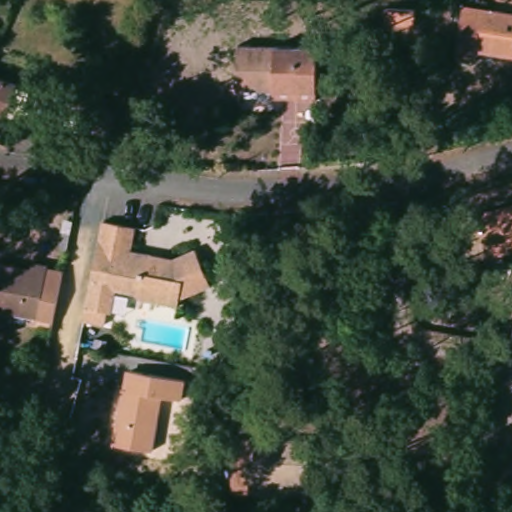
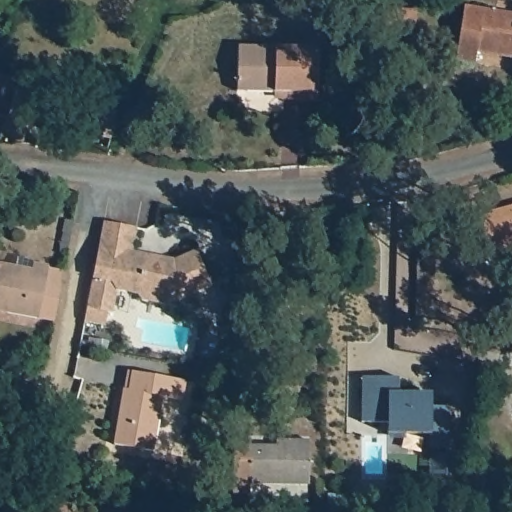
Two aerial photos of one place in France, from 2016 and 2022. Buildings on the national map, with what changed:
unchanged [(512,12),(512,54),(475,48),(473,62),(454,58),(462,4),(512,12)]
unchanged [(414,9),(413,26),(383,25),(384,8),(414,9)]
unchanged [(317,45),(315,99),(296,99),(296,90),(236,89),(236,44),(317,45)]
unchanged [(5,115),(0,114),(0,78),(15,83),(5,115)]
unchanged [(485,252),(475,218),(512,209),(512,253),(487,260),(485,252)]
unchanged [(125,250),(145,254),(168,258),(190,249),(205,285),(174,298),(172,305),(135,298),(131,292),(110,288),(105,311),(101,310),(99,323),(78,319),(97,220),(130,227),(125,250)]
unchanged [(31,260),(49,264),(48,266),(62,269),(52,319),(0,309),(0,261),(14,263),(30,266),(31,260)]
unchanged [(126,386),(129,369),(183,377),(180,398),(160,394),(151,448),(112,441),(121,385),(126,386)]
new [(397,377),(396,392),(420,393),(430,393),(430,397),(430,406),(446,406),(446,449),(427,449),(427,434),(385,433),(385,422),(360,422),(360,376),(397,377)]
unchanged [(37,400),(35,408),(21,405),(22,398),(37,400)]
unchanged [(249,437),(249,444),(274,445),(274,438),(307,438),(307,482),(249,481),(248,492),(231,492),(232,437),(249,437)]

